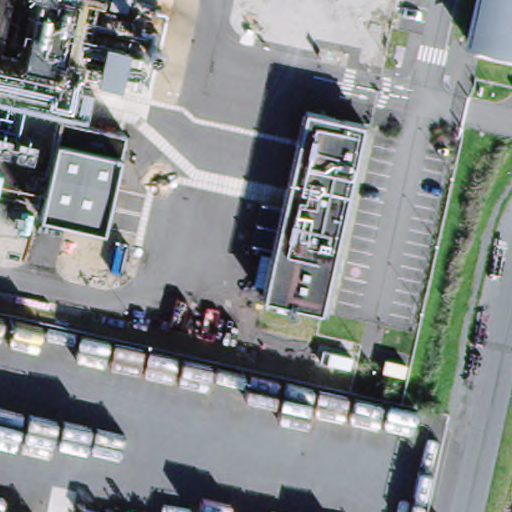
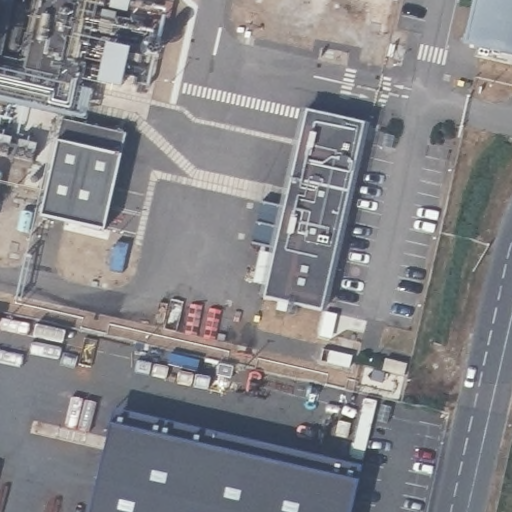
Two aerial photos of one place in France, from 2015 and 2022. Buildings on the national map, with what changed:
unchanged [(150,85),(146,86),(128,81),(126,87),(96,79),(103,57),(84,50),(74,87),(94,94),(88,124),(126,135),(121,157),(106,237),(38,222),(64,115),(0,101),(0,54),(25,69),(41,3),(33,0),(111,0),(166,14),(150,85)]
unchanged [(473,0),(512,0),(512,58),(463,45),(473,0)]
unchanged [(364,123),(323,311),(264,300),(304,110),(364,123)]
new [(358,482),(351,512),(90,512),(110,424),(113,425),(115,410),(362,467),(358,482)]

